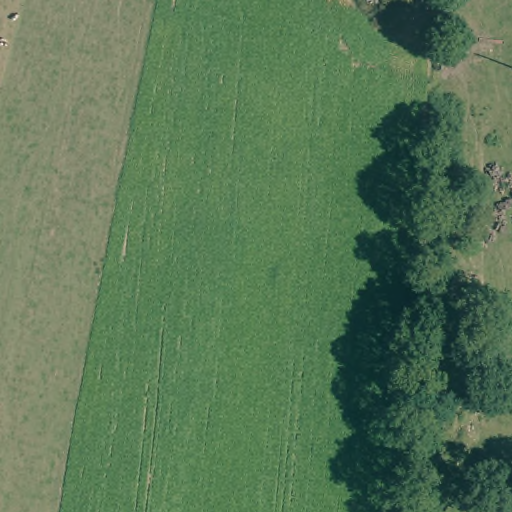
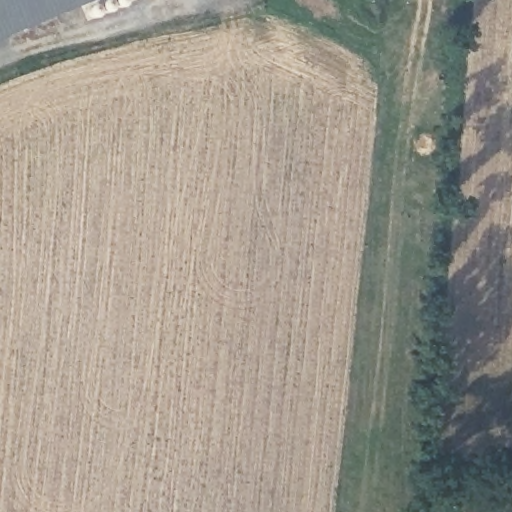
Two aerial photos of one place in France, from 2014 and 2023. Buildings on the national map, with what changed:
new [(0,38),(0,0),(93,0),(0,38)]

